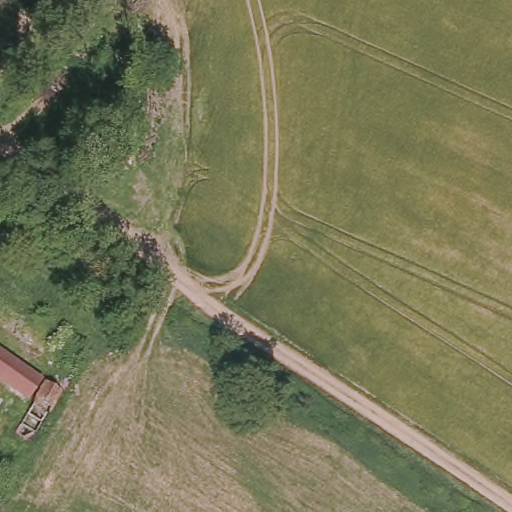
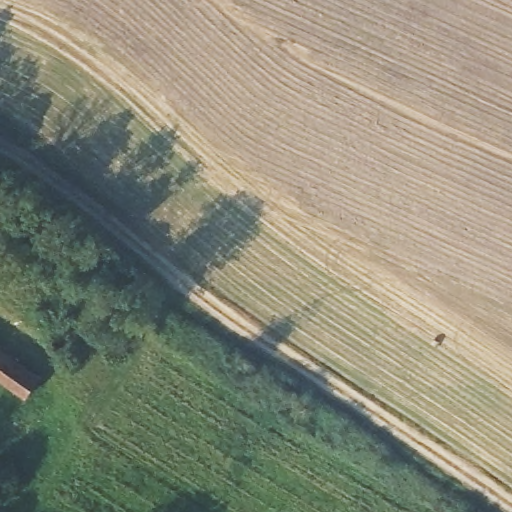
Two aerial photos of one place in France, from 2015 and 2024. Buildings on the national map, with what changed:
unchanged [(0,382),(0,349),(43,377),(26,400),(0,382)]

